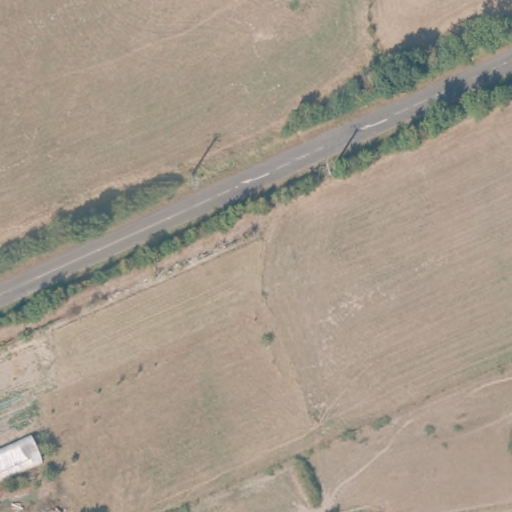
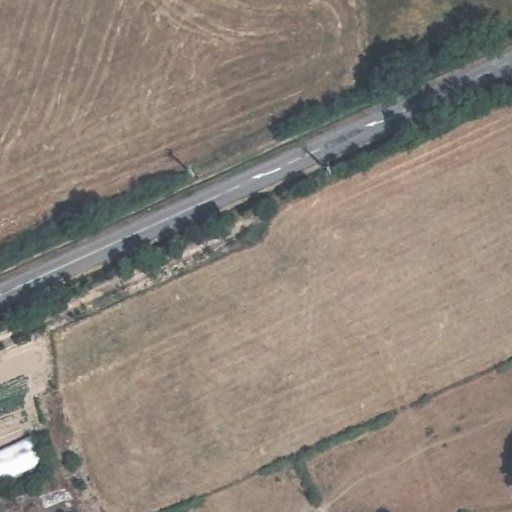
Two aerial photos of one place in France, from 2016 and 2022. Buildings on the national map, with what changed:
[]

